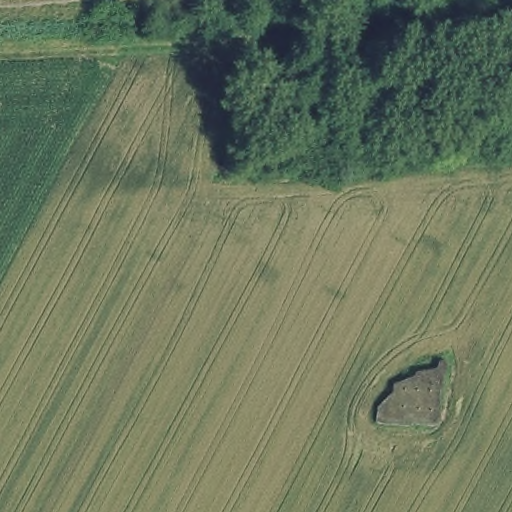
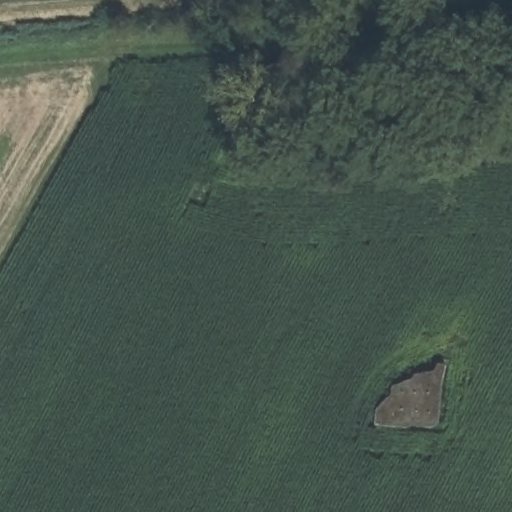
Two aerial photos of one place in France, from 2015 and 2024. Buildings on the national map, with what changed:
unchanged [(437,423),(375,425),(375,402),(391,385),(434,378),(437,423)]

